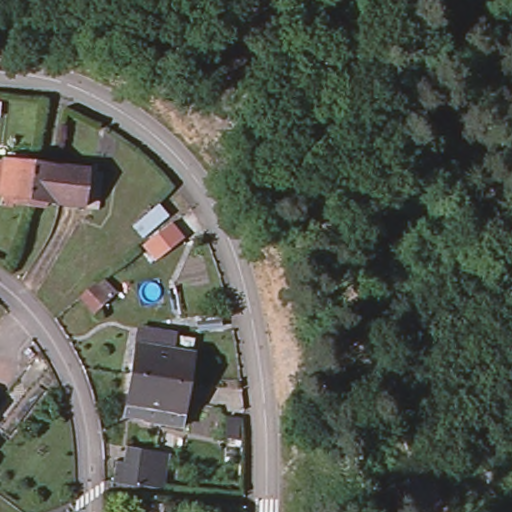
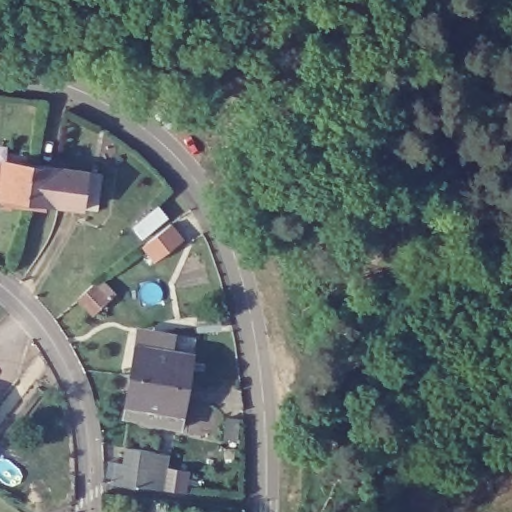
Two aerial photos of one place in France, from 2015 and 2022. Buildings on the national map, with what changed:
unchanged [(0,164),(2,165),(2,157),(29,161),(23,203),(8,201),(7,204),(0,203),(0,164)]
unchanged [(51,202),(41,200),(40,205),(23,203),(29,161),(56,165),(79,167),(84,169),(98,171),(93,208),(78,206),(51,202)]
unchanged [(169,219),(144,241),(134,229),(159,207),(169,219)]
unchanged [(187,246),(165,262),(155,250),(178,234),(187,246)]
unchanged [(78,301),(81,298),(87,293),(94,287),(109,302),(102,308),(93,317),(78,301)]
unchanged [(122,393),(126,367),(130,341),(132,330),(133,321),(172,327),(169,347),(190,350),(186,373),(179,418),(119,408),(122,393)]
unchanged [(124,465),(127,449),(156,454),(153,470),(137,467),(135,489),(113,486),(117,464),(124,465)]
unchanged [(152,504),(149,512),(139,512),(143,501),(152,504)]

